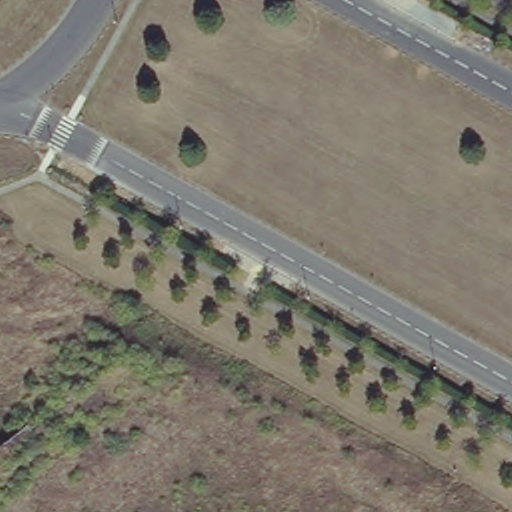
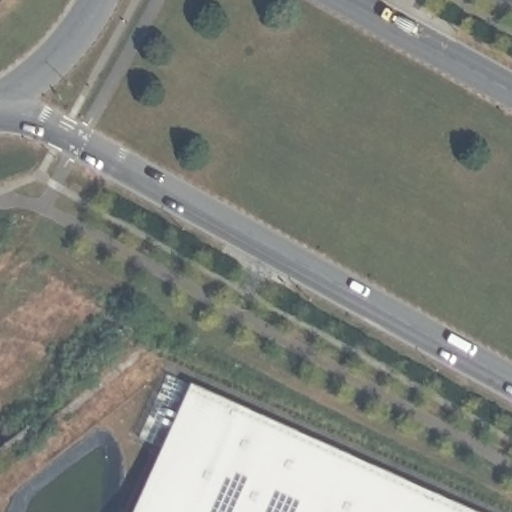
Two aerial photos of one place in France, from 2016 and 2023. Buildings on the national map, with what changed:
new [(159,447),(137,436),(168,369),(483,512),(130,512),(159,447)]

